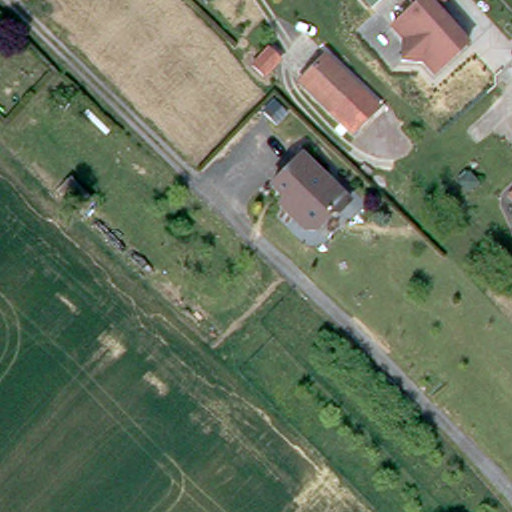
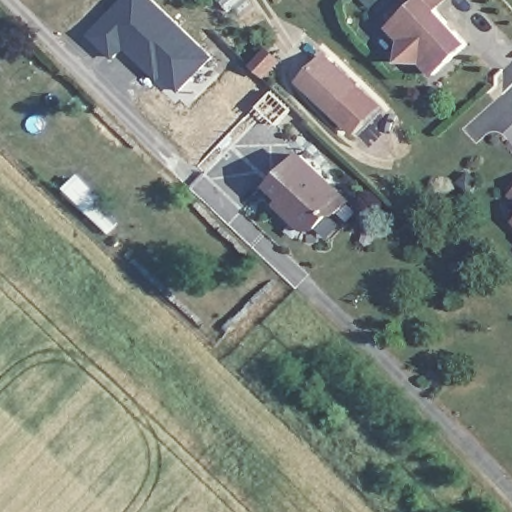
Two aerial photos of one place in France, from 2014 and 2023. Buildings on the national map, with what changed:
new [(125,46),(114,57),(91,35),(125,0),(152,0),(211,57),(178,90),(162,74),(158,78),(125,46)]
unchanged [(436,4),(469,39),(434,71),(422,58),(401,57),(401,36),(390,23),(415,1),(414,0),(441,0),(436,4)]
unchanged [(345,94),(330,110),(296,78),(312,62),(321,52),(355,84),(345,94)]
unchanged [(337,207),(330,207),(316,224),(305,223),(280,199),(285,193),(271,180),(301,149),(326,174),(335,182),(348,195),(337,207)]
new [(72,179),(93,201),(80,214),(59,192),(72,179)]

